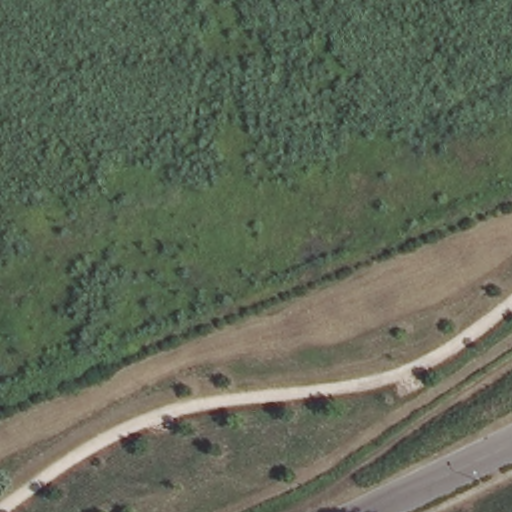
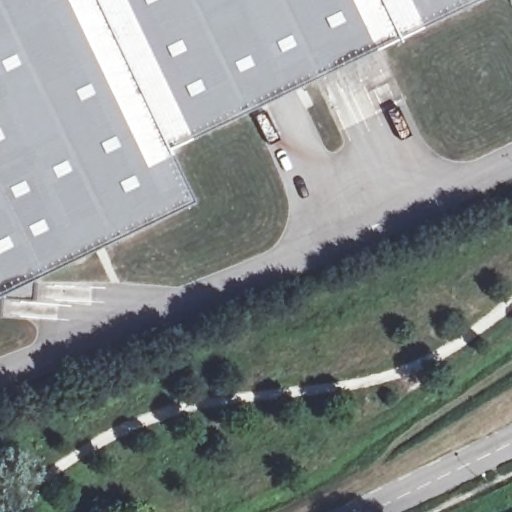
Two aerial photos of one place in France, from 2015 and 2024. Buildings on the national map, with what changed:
new [(188,202),(34,275),(33,299),(0,295),(0,0),(471,0),(164,148),(188,202)]

